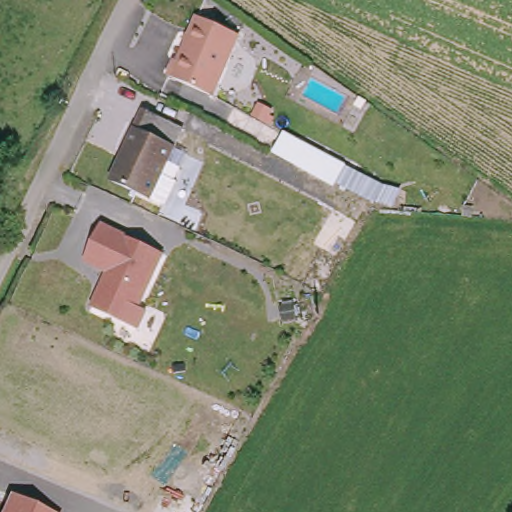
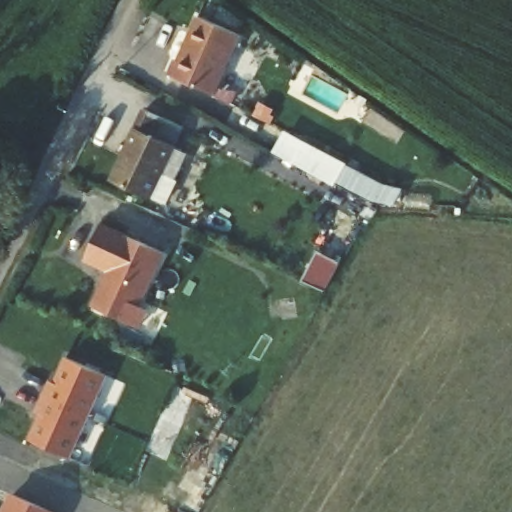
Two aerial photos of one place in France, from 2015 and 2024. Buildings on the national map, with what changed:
unchanged [(242,42),(215,104),(168,82),(175,66),(179,69),(198,24),(242,42)]
unchanged [(183,125),(158,171),(169,177),(155,201),(110,175),(148,106),(183,125)]
unchanged [(348,160),(339,180),(299,163),(310,141),(348,160)]
unchanged [(161,251),(138,310),(143,311),(137,331),(87,312),(102,273),(83,265),(100,226),(161,251)]
new [(107,378),(71,460),(29,441),(40,416),(35,413),(50,384),(54,386),(65,359),(107,378)]
unchanged [(4,512),(10,498),(46,512),(4,512)]

